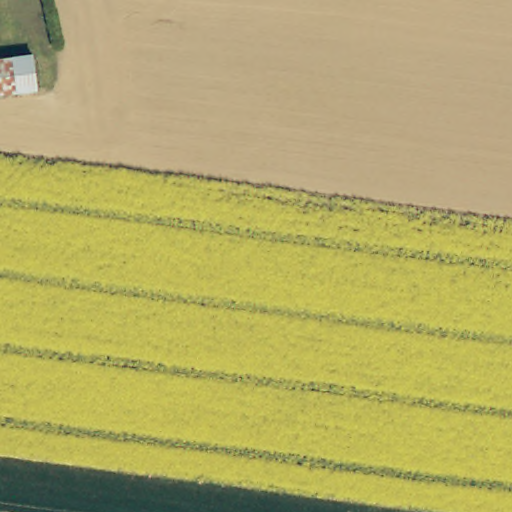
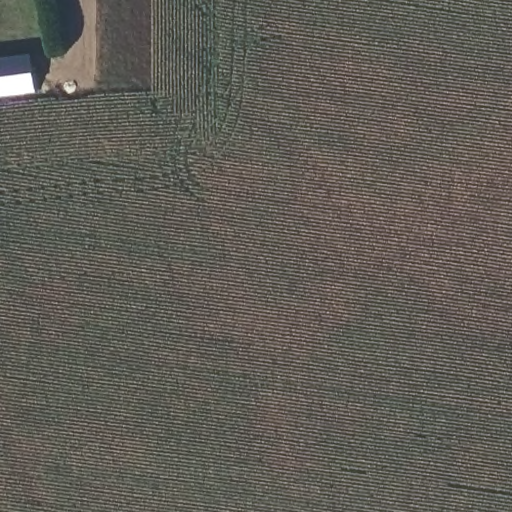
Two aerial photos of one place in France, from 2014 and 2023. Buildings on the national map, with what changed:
unchanged [(0,60),(33,56),(36,91),(0,94),(0,60)]

